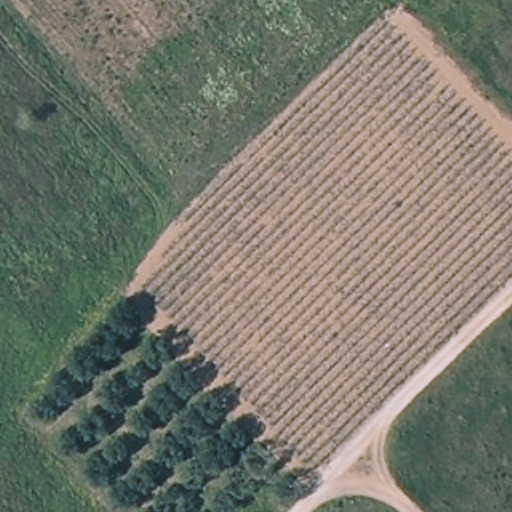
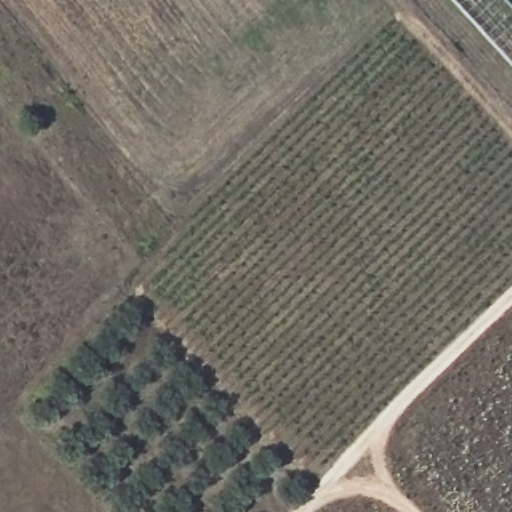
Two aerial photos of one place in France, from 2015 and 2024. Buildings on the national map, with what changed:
new [(512,0),(512,63),(455,0),(512,0)]

